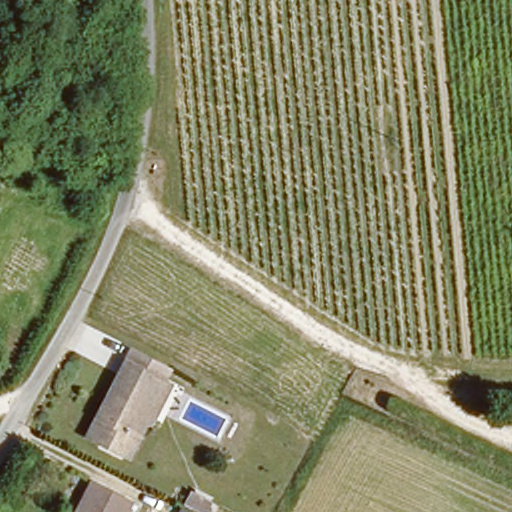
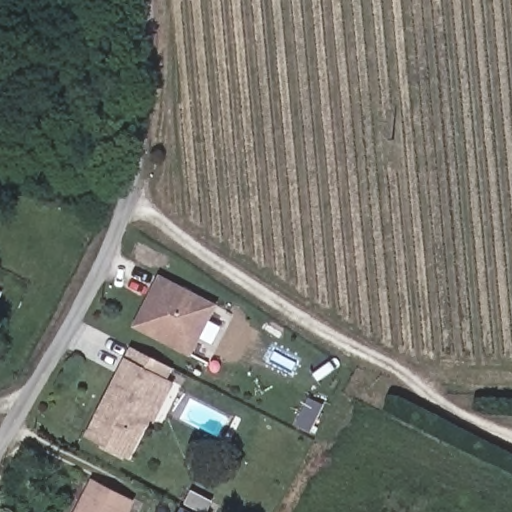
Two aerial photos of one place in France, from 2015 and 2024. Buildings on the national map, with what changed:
new [(190,357),(132,327),(158,274),(217,305),(190,357)]
unchanged [(85,437),(122,363),(154,379),(167,386),(150,421),(145,418),(126,457),(85,437)]
unchanged [(127,505),(124,512),(76,512),(90,486),(127,505)]
unchanged [(207,512),(195,512),(182,506),(189,492),(204,500),(211,503),(207,512)]
unchanged [(184,512),(179,512),(180,510),(184,512)]

